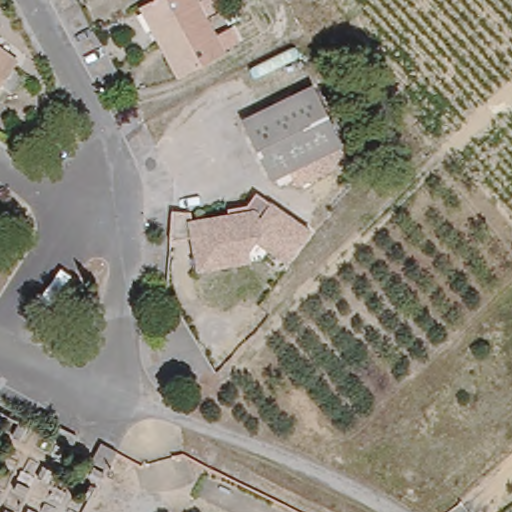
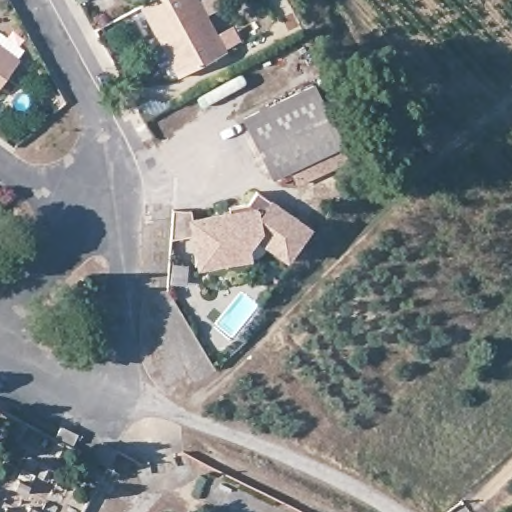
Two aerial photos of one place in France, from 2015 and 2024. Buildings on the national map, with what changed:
unchanged [(201,0),(234,64),(184,89),(147,16),(171,2),(170,0),(201,0)]
unchanged [(0,57),(12,66),(0,83),(0,57)]
unchanged [(272,176),(240,118),(309,81),(341,140),(348,152),(297,180),(290,167),(272,176)]
unchanged [(205,244),(203,231),(181,234),(183,209),(202,206),(203,214),(241,209),(240,204),(257,202),(260,201),(269,191),(320,234),(295,262),(276,246),(269,255),(208,263),(205,244)]
unchanged [(99,447),(115,457),(107,471),(90,461),(99,447)]

